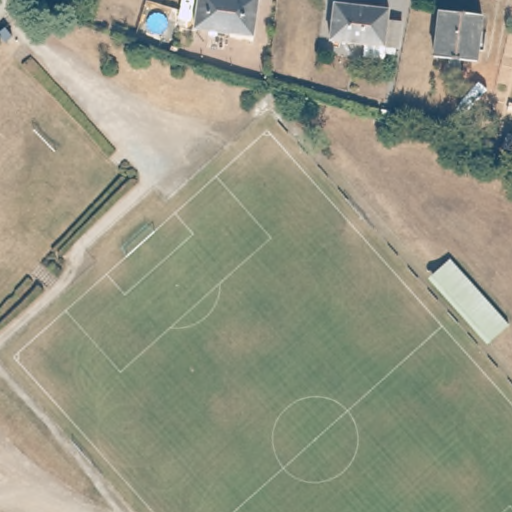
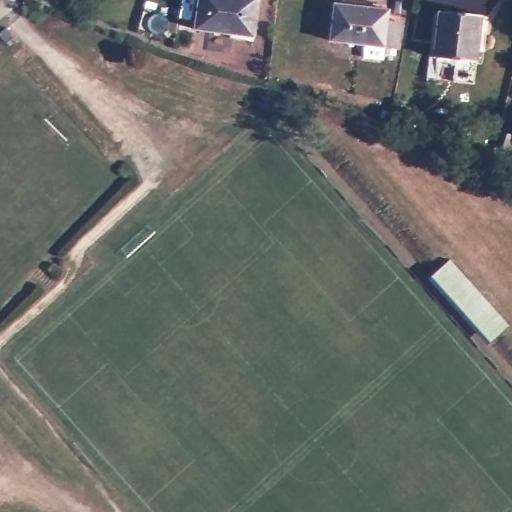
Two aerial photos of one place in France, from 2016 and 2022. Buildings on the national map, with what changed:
unchanged [(196,0),(256,0),(253,35),(193,28),(196,0)]
unchanged [(332,0),(342,0),(389,5),(385,41),(329,36),(332,0)]
unchanged [(434,56),(439,10),(480,15),(476,61),(434,56)]
unchanged [(267,97),(260,89),(268,83),(276,90),(267,97)]
unchanged [(491,340),(432,273),(448,259),(508,324),(491,340)]

